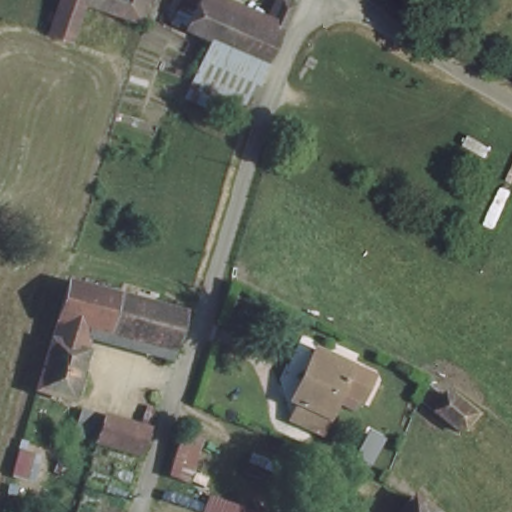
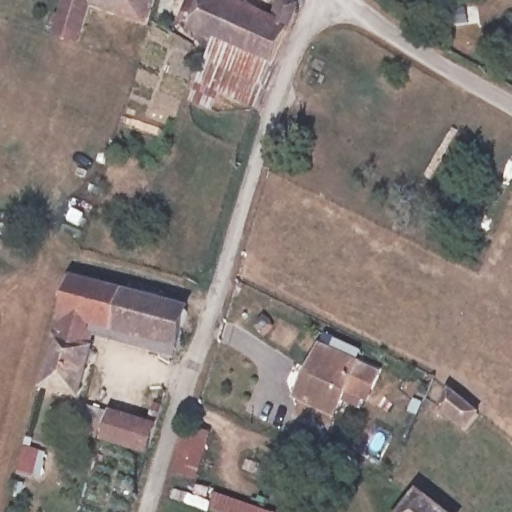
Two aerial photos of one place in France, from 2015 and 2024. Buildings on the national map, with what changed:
unchanged [(73,43),(49,35),(60,0),(154,0),(145,28),(85,10),(73,43)]
unchanged [(175,26),(187,0),(219,0),(202,38),(175,26)]
unchanged [(200,100),(178,93),(202,38),(219,0),(237,0),(260,9),(264,0),(284,0),(278,17),(250,100),(207,83),(200,100)]
unchanged [(112,333),(105,330),(98,352),(51,339),(70,275),(71,275),(125,292),(112,333)]
unchanged [(125,292),(191,311),(178,352),(112,333),(125,292)]
unchanged [(83,398),(38,384),(51,339),(98,352),(83,398)]
unchanged [(305,381),(315,352),(382,376),(372,401),(351,393),(336,434),(302,422),(306,409),(295,405),(305,381)]
unchanged [(455,393),(483,418),(466,438),(438,414),(455,393)]
unchanged [(134,452),(87,438),(97,407),(145,419),(134,452)]
unchanged [(208,429),(195,473),(175,465),(188,422),(208,429)]
unchanged [(414,496),(435,512),(401,512),(414,496)]

